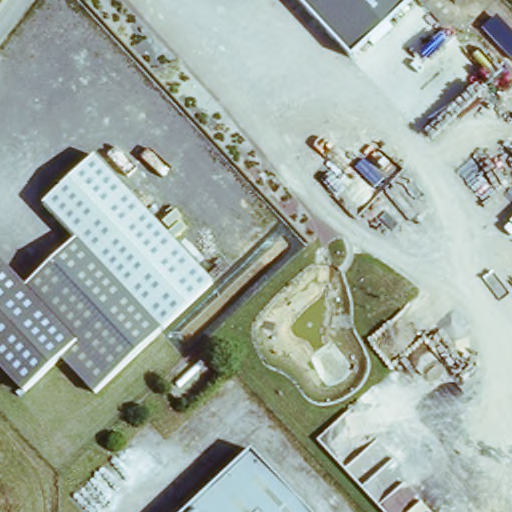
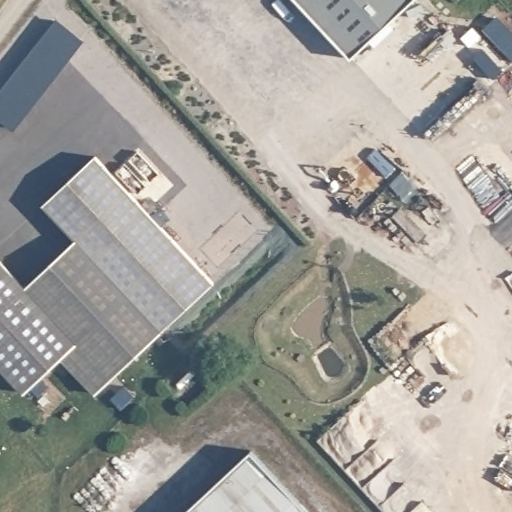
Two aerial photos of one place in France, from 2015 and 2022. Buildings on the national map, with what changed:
unchanged [(351,64),(292,0),(417,0),(418,1),(351,64)]
new [(61,17),(83,35),(15,125),(0,114),(0,97),(61,17)]
unchanged [(47,206),(98,159),(215,285),(164,333),(86,246),(79,239),(47,206)]
unchanged [(79,344),(27,287),(79,239),(164,333),(98,395),(64,357),(79,344)]
unchanged [(27,391),(0,362),(0,257),(27,287),(79,344),(64,357),(27,391)]
unchanged [(251,453),(306,512),(187,512),(251,453)]

